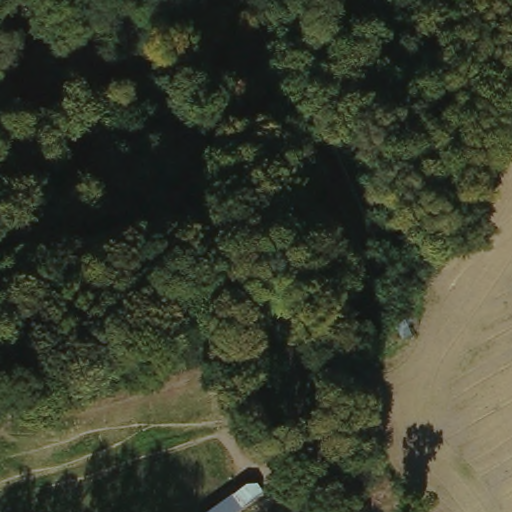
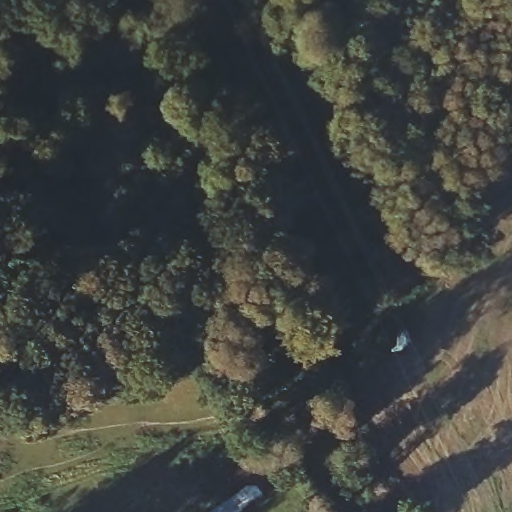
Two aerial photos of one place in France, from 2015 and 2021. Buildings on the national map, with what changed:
unchanged [(210,512),(249,485),(259,485),(263,493),(238,512),(210,512)]

